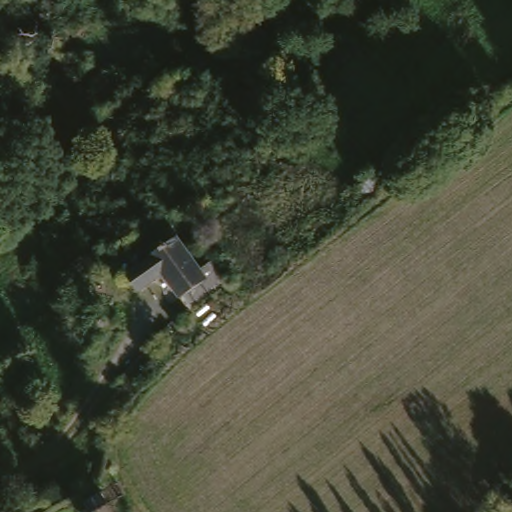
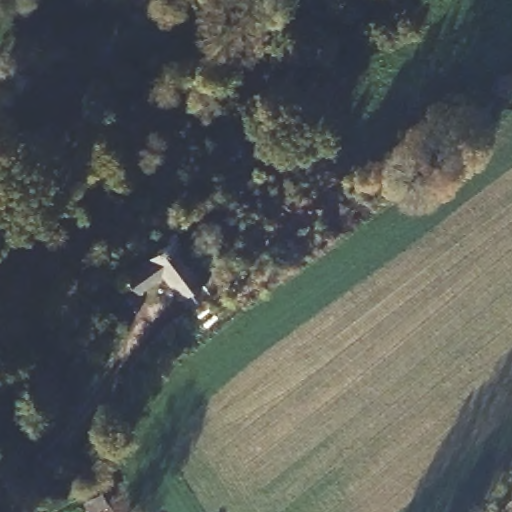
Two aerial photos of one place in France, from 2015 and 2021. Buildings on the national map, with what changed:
unchanged [(209,278),(183,295),(168,277),(140,295),(128,277),(177,239),(209,278)]
unchanged [(27,504),(28,503),(46,495),(52,506),(42,512),(24,512),(21,506),(27,504)]

